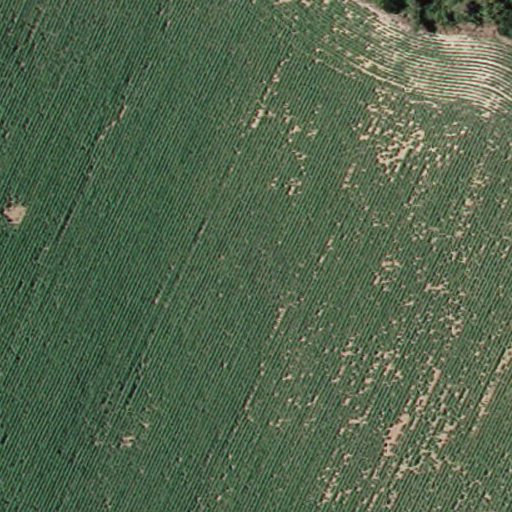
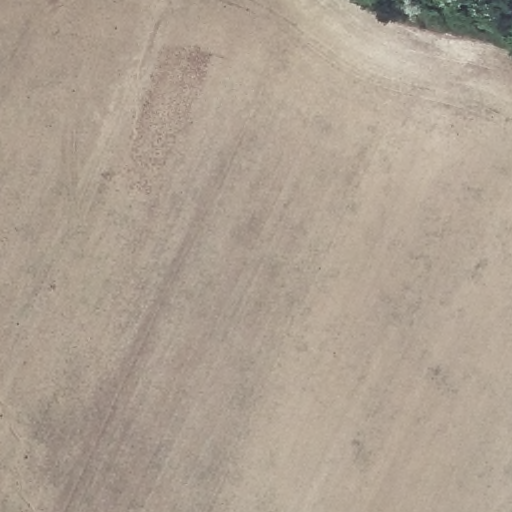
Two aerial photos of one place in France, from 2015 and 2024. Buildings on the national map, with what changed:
[]

